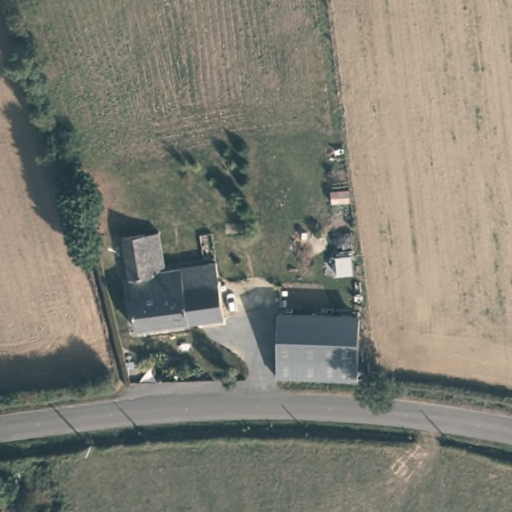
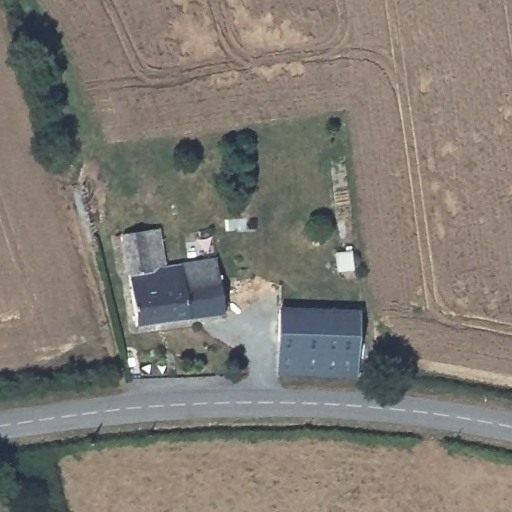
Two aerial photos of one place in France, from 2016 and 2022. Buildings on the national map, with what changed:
unchanged [(131,325),(129,314),(121,316),(117,301),(125,299),(118,241),(141,237),(145,265),(179,261),(182,298),(185,319),(131,325)]
unchanged [(185,319),(182,298),(179,261),(211,257),(219,314),(185,319)]
unchanged [(357,375),(279,372),(281,307),(361,310),(357,375)]

